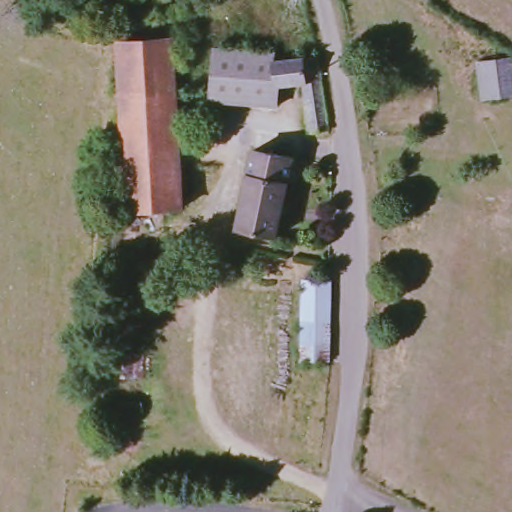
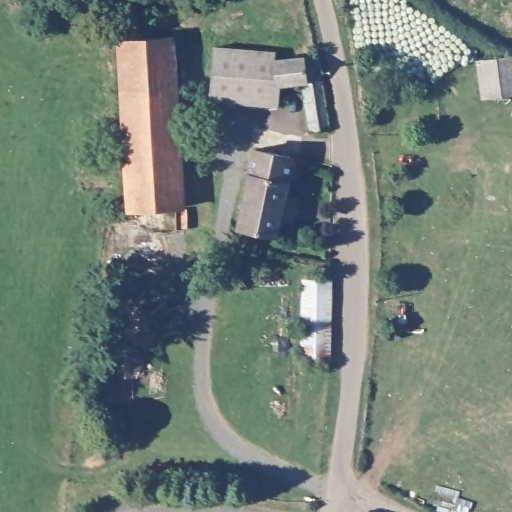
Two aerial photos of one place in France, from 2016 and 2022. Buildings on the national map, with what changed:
unchanged [(173,43),(182,214),(138,217),(130,104),(124,104),(119,46),(173,43)]
unchanged [(280,61),(283,88),(280,106),(213,100),(218,49),(282,55),(283,61),(280,61)]
unchanged [(331,127),(315,130),(307,83),(283,88),(280,61),(283,61),(322,55),(331,127)]
unchanged [(512,60),(512,97),(485,99),(483,63),(512,60)]
unchanged [(295,160),(307,163),(313,165),(312,170),(306,168),(301,188),(289,186),(279,239),(238,230),(255,151),(295,160)]
unchanged [(308,359),(310,280),(325,280),(335,281),(332,359),(320,359),(308,359)]

